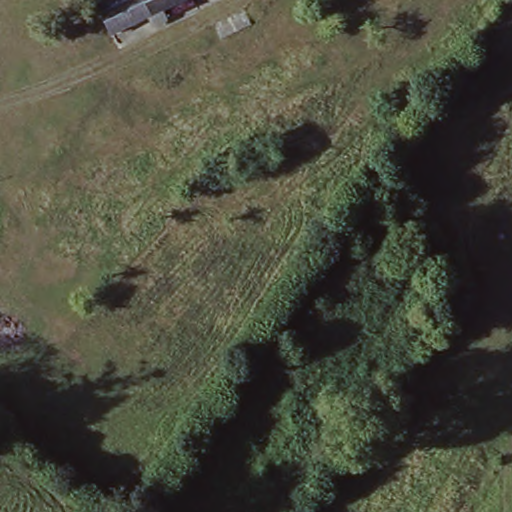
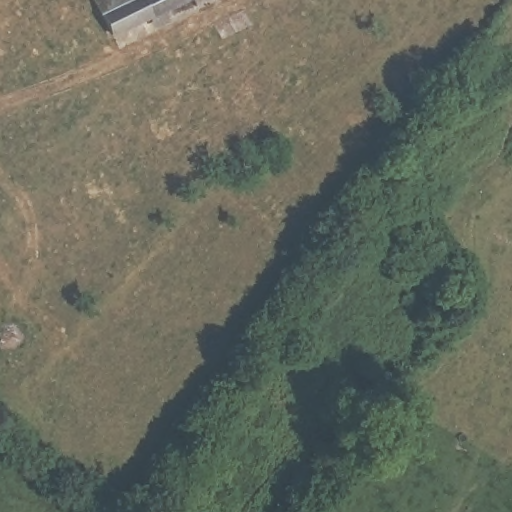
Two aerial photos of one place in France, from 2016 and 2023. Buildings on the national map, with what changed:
unchanged [(92,0),(189,0),(110,37),(92,0)]

